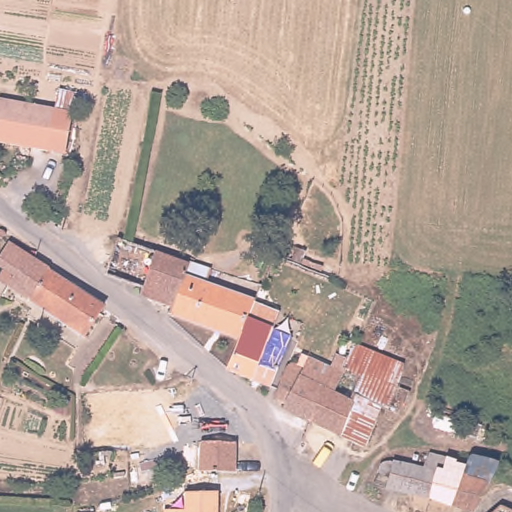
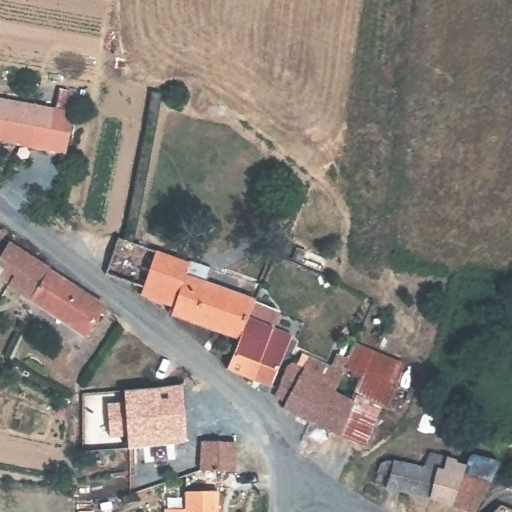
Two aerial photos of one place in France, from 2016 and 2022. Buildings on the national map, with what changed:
unchanged [(0,95),(74,104),(67,152),(0,144),(0,95)]
unchanged [(6,285),(0,293),(0,249),(6,240),(34,257),(47,265),(104,303),(84,332),(29,298),(6,285)]
unchanged [(179,255),(166,298),(137,290),(137,283),(150,246),(179,255)]
unchanged [(179,252),(202,259),(198,275),(251,292),(246,308),(239,328),(210,320),(165,306),(166,298),(179,255),(179,252)]
unchanged [(263,382),(225,359),(241,331),(239,328),(246,308),(277,325),(292,333),(283,348),(276,362),(263,382)]
unchanged [(303,414),(292,410),(280,406),(282,400),(271,395),(285,365),(288,360),(295,357),(297,357),(302,343),(328,352),(318,376),(346,386),(342,395),(349,397),(360,367),(350,363),(357,341),(405,360),(389,408),(380,405),(368,436),(353,430),(332,423),(303,414)]
new [(186,443),(159,446),(127,450),(126,436),(109,437),(107,403),(124,402),(122,390),(154,387),(182,385),(186,443)]
demolished [(129,440),(128,431),(167,427),(170,405),(185,405),(237,405),(236,432),(200,435),(184,435),(167,436),(136,439),(129,440)]
unchanged [(236,463),(200,462),(200,435),(236,432),(236,463)]
unchanged [(473,510),(428,495),(383,483),(390,457),(422,462),(426,448),(466,457),(467,449),(500,458),(473,510)]
unchanged [(217,491),(218,512),(186,512),(186,491),(217,491)]
unchanged [(508,493),(512,496),(512,512),(483,512),(508,493)]
unchanged [(164,506),(186,507),(186,512),(164,512),(164,506)]

